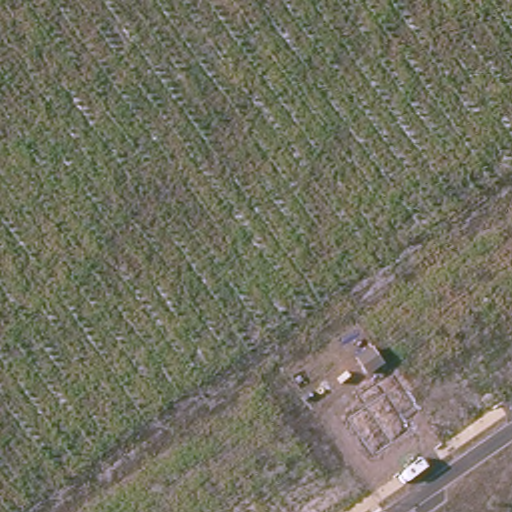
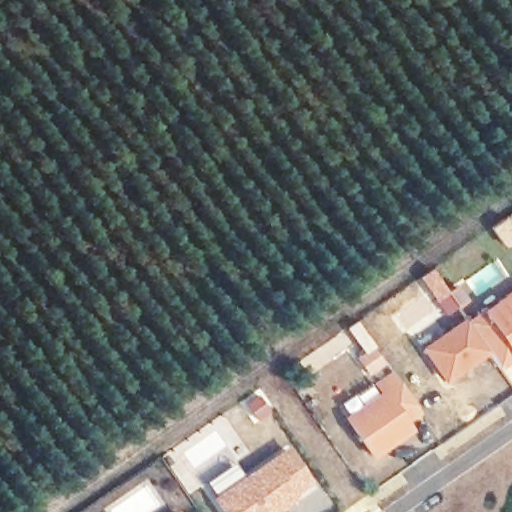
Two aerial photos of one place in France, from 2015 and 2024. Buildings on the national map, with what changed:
new [(491,354),(471,325),(512,296),(512,363),(502,370),(491,354)]
new [(469,322),(471,325),(491,354),(449,383),(427,351),(469,322)]
unchanged [(357,359),(372,347),(386,363),(371,376),(357,359)]
new [(377,387),(393,376),(416,408),(420,414),(405,425),(411,433),(374,459),(348,422),(385,397),(377,387)]
new [(285,448),(307,480),(291,492),(294,496),(270,512),(224,512),(214,498),(285,448)]

